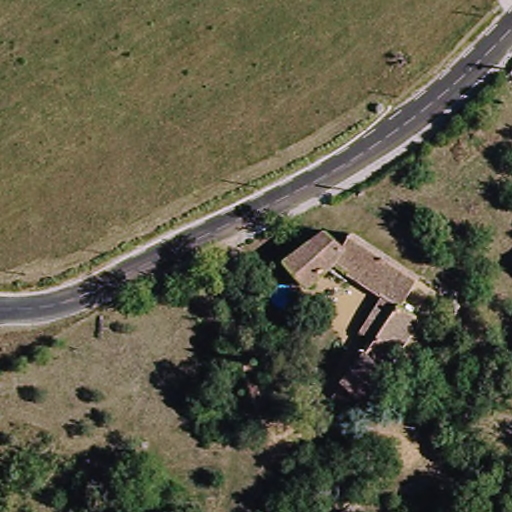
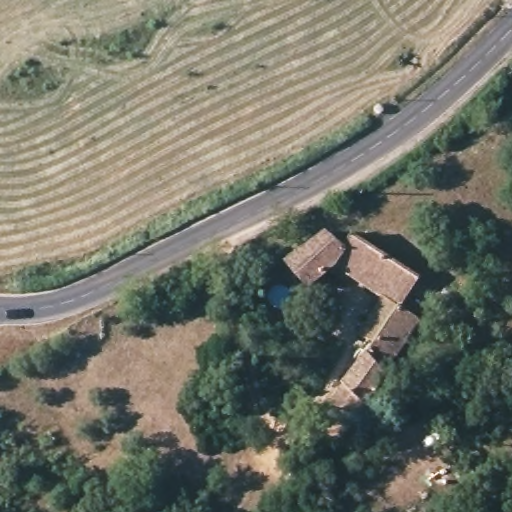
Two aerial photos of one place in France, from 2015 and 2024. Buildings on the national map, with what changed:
unchanged [(356,415),(336,406),(388,355),(360,332),(380,297),(336,264),(308,289),(293,269),(336,236),(351,252),(358,240),(425,281),(408,310),(428,323),(356,415)]

